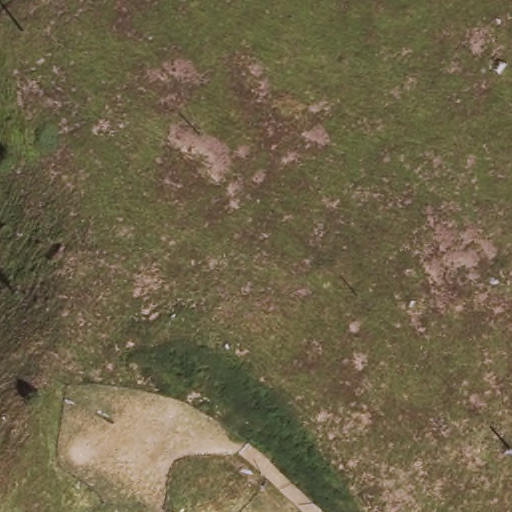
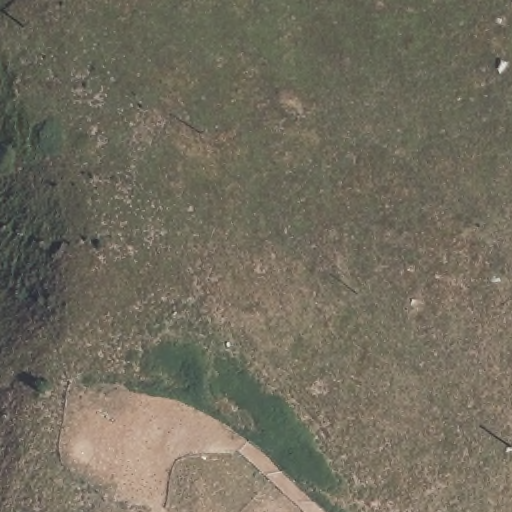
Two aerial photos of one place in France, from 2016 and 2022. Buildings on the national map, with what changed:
[]

